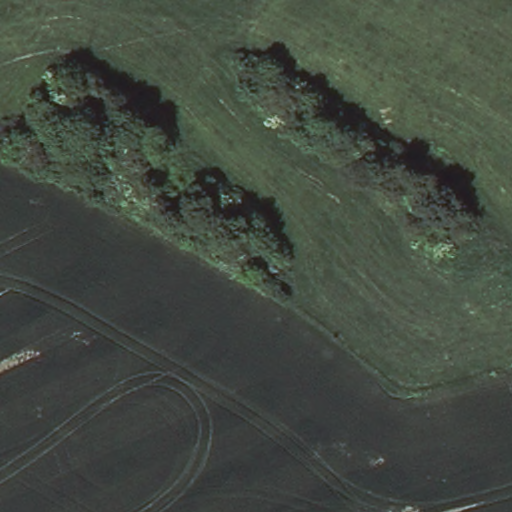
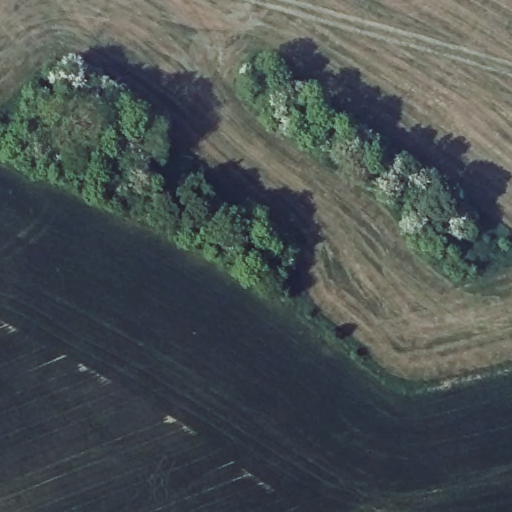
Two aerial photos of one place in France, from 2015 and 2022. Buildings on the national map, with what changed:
unchanged [(30,135),(29,148),(11,146),(12,134),(30,135)]
unchanged [(254,246),(259,277),(245,280),(240,249),(254,246)]

